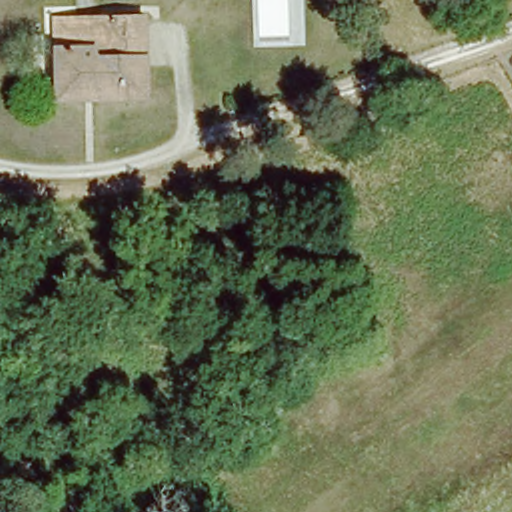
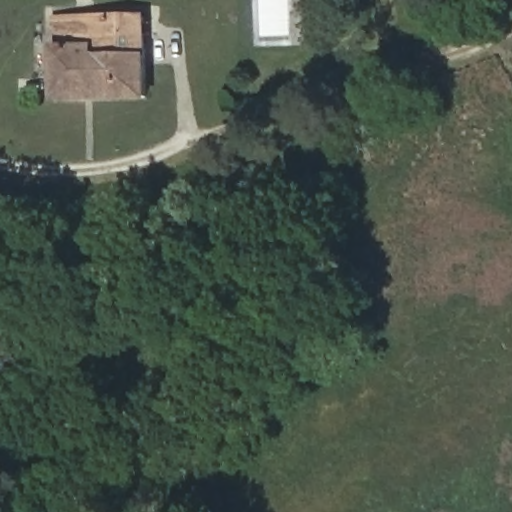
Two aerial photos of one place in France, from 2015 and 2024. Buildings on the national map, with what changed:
unchanged [(54,15),(139,14),(146,95),(60,95),(55,33),(54,15)]

